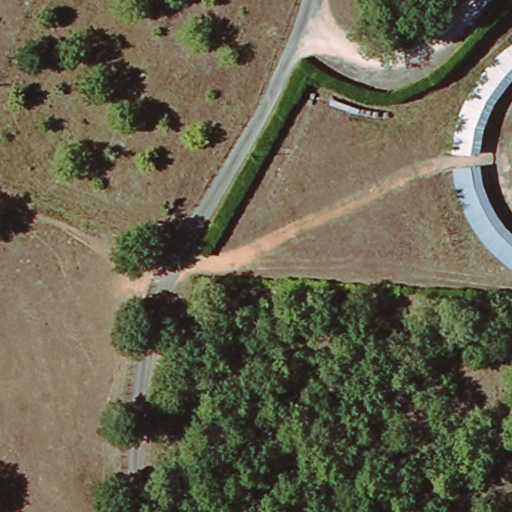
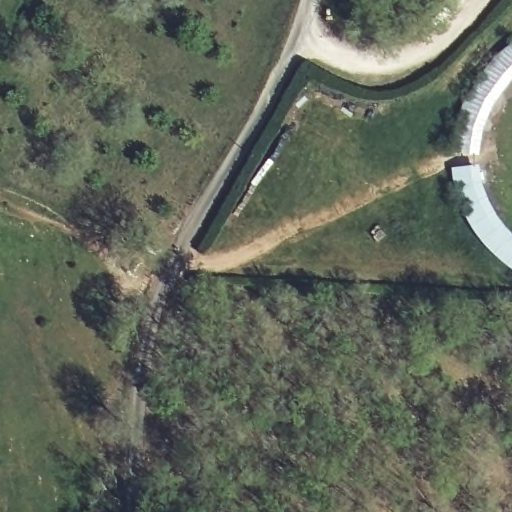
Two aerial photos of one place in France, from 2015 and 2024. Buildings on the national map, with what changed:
unchanged [(486,117),(475,158),(449,156),(452,129),(464,98),(488,64),(512,46),(512,80),(503,86),(486,117)]
unchanged [(481,189),(494,216),(510,235),(512,237),(512,270),(495,261),(473,235),(459,204),(447,166),(472,165),(481,189)]

